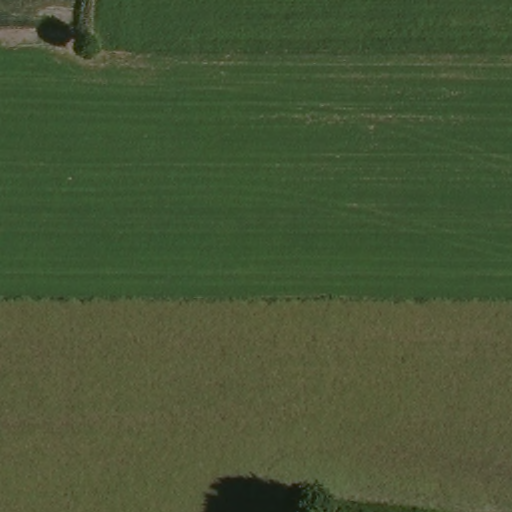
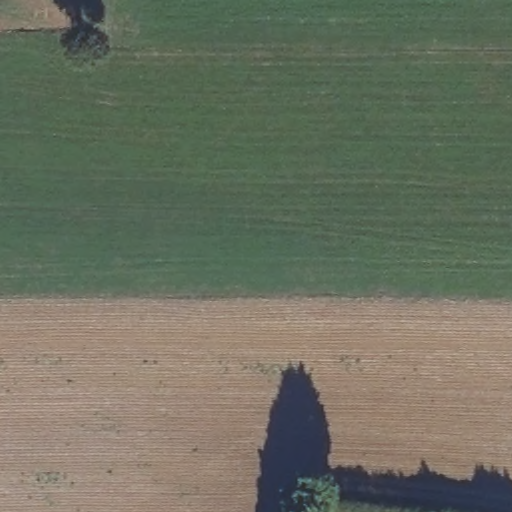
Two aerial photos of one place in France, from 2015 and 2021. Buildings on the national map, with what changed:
[]

